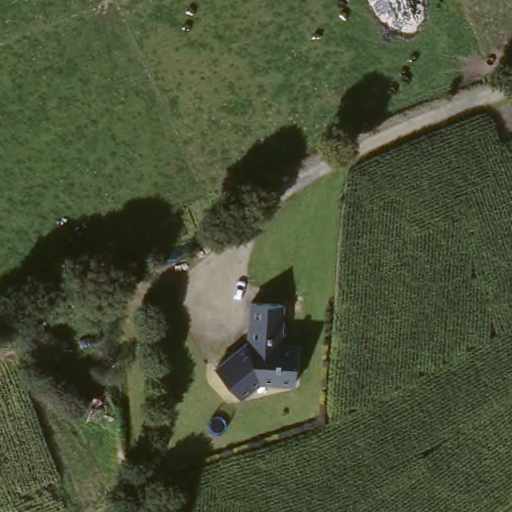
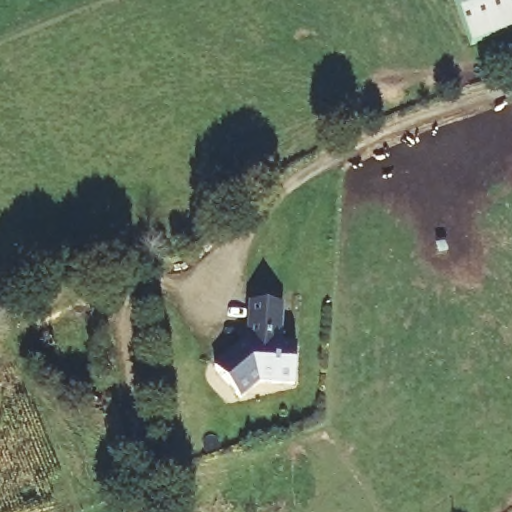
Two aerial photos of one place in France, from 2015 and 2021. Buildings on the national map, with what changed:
new [(512,39),(473,54),(453,0),(512,0),(512,39)]
unchanged [(248,341),(250,340),(247,300),(280,298),(282,338),(298,337),(301,376),(266,378),(249,397),(220,372),(248,341)]

